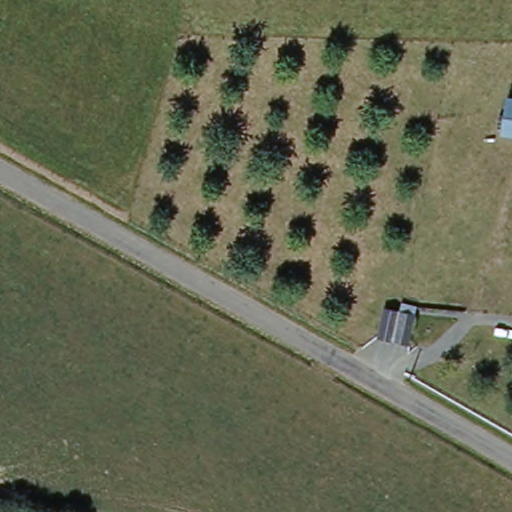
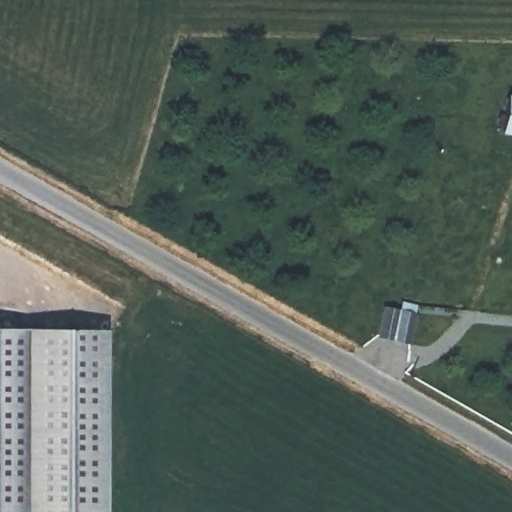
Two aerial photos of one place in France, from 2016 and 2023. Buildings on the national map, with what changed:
unchanged [(512,101),(512,135),(506,135),(511,100),(512,101)]
unchanged [(388,317),(406,320),(408,311),(421,314),(415,349),(384,344),(388,317)]
new [(105,512),(0,512),(0,329),(107,330),(105,512)]

